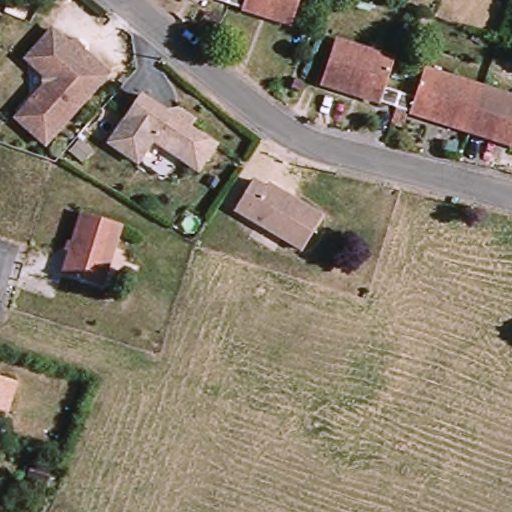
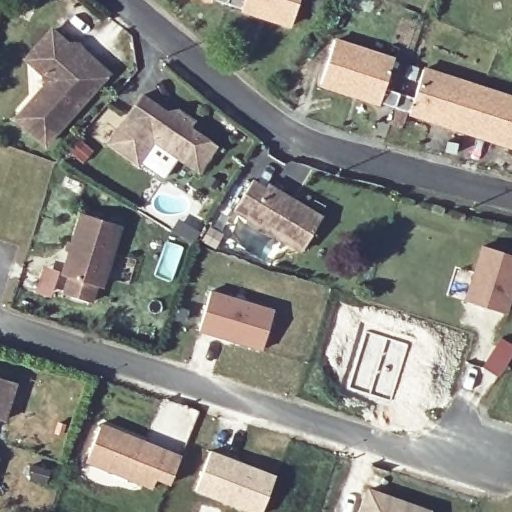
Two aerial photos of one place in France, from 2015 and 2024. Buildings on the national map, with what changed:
unchanged [(224,0),(228,0),(227,1),(224,0)]
unchanged [(228,0),(298,0),(291,21),(227,1),(228,0)]
unchanged [(106,73),(43,142),(14,116),(44,85),(43,76),(36,69),(24,58),(35,45),(49,30),(66,45),(77,55),(81,50),(106,73)]
unchanged [(323,85),(337,42),(393,61),(384,89),(398,93),(393,109),(323,85)]
unchanged [(415,99),(424,71),(482,91),(468,134),(393,109),(398,93),(415,99)]
unchanged [(482,91),(512,101),(512,148),(468,134),(482,91)]
unchanged [(148,143),(132,165),(104,146),(137,99),(168,120),(172,114),(187,124),(182,130),(208,149),(200,163),(193,174),(176,162),(148,143)]
unchanged [(264,190),(266,186),(320,219),(299,252),(233,212),(251,182),(264,190)]
unchanged [(121,227),(118,236),(102,289),(63,276),(82,215),(121,227)]
new [(512,256),(512,285),(503,313),(464,301),(482,247),(512,256)]
new [(211,291),(275,310),(263,350),(199,330),(211,291)]
unchanged [(14,381),(2,421),(0,420),(0,377),(14,381)]
new [(145,442),(165,450),(180,456),(169,483),(155,477),(151,487),(86,461),(101,424),(145,442)]
new [(249,512),(195,491),(211,450),(276,475),(261,512),(249,512)]
new [(432,510),(432,512),(361,512),(369,488),(432,510)]

